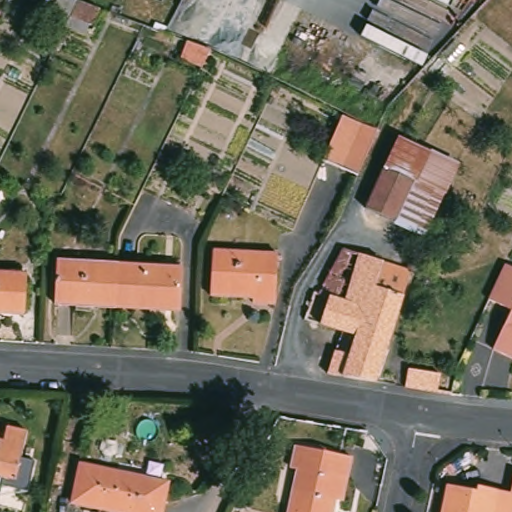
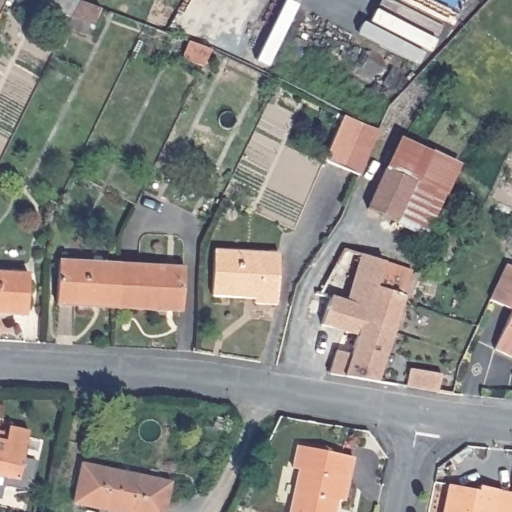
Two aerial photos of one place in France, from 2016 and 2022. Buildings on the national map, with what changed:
unchanged [(96,29),(91,27),(86,40),(66,32),(71,21),(47,10),(52,0),(70,0),(80,4),(103,12),(96,29)]
unchanged [(363,169),(347,161),(331,152),(348,121),(355,124),(358,126),(367,130),(373,134),(377,139),(363,169)]
unchanged [(386,169),(401,135),(462,164),(430,237),(393,225),(396,221),(366,210),(386,169)]
unchanged [(435,260),(426,257),(418,256),(424,237),(441,242),(440,243),(435,260)]
unchanged [(386,260),(414,269),(408,292),(407,296),(396,330),(366,320),(370,308),(322,291),(347,247),(386,260)]
unchanged [(214,249),(279,254),(277,305),(252,303),(252,294),(212,292),(214,249)]
unchanged [(58,302),(61,260),(125,265),(122,305),(58,302)]
unchanged [(512,357),(492,347),(511,308),(488,297),(491,292),(506,262),(512,266),(512,357)]
unchanged [(125,265),(186,268),(183,308),(122,305),(125,265)]
unchanged [(24,269),(20,312),(0,311),(0,268),(24,269)]
unchanged [(317,289),(322,291),(370,308),(366,320),(396,330),(391,346),(379,381),(372,379),(333,372),(346,329),(308,317),(317,289)]
unchanged [(392,367),(423,372),(422,390),(407,388),(390,386),(392,367)]
unchanged [(9,428),(11,422),(29,427),(15,478),(0,474),(0,426),(9,428)]
unchanged [(294,466),(299,443),(354,456),(350,478),(345,498),(338,498),(335,512),(288,512),(298,467),(294,466)]
unchanged [(107,506),(72,498),(80,462),(115,470),(107,506)]
unchanged [(165,512),(134,512),(107,506),(115,470),(172,482),(165,512)]
unchanged [(478,492),(480,487),(501,492),(511,493),(512,493),(512,512),(444,512),(448,487),(478,492)]
unchanged [(512,493),(511,493),(512,488),(512,493)]

